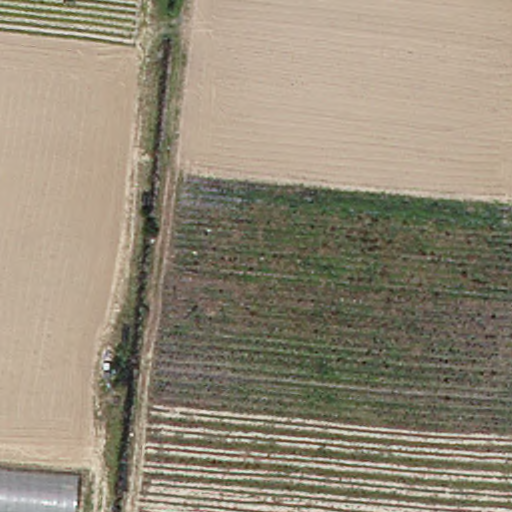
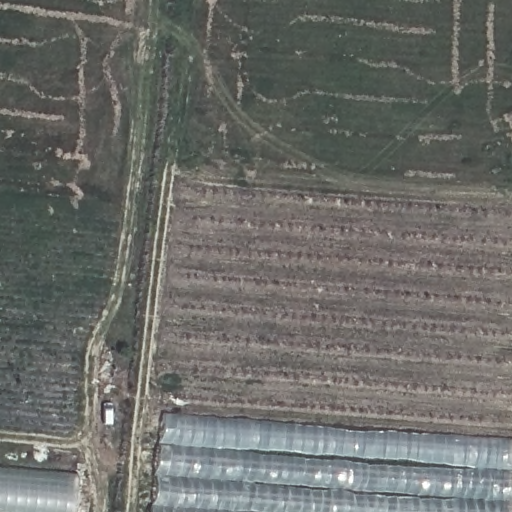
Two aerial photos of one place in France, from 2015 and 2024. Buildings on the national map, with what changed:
new [(151,512),(163,411),(512,439),(512,497),(511,512),(151,512)]
new [(71,512),(0,512),(0,465),(74,472),(71,512)]
demolished [(0,512),(0,511),(11,512),(0,512)]

